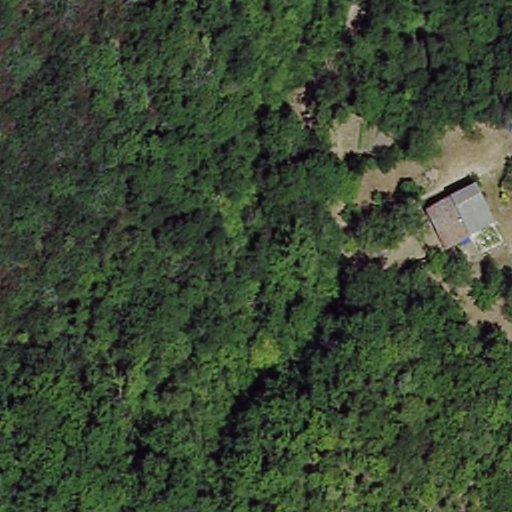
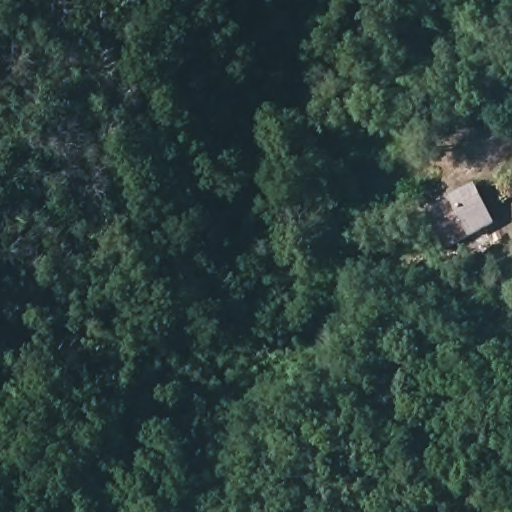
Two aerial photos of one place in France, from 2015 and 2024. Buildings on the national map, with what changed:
unchanged [(437,238),(422,202),(471,178),(487,215),(437,238)]

